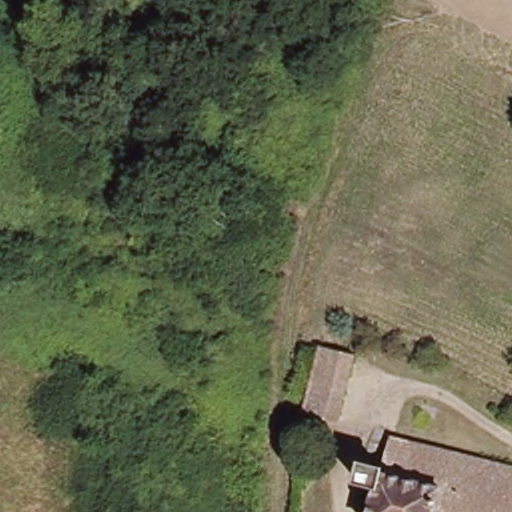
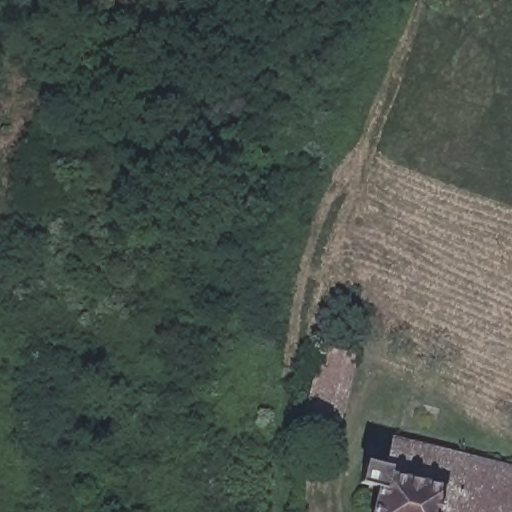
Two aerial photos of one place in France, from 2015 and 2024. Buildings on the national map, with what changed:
unchanged [(322,347),(326,348),(354,354),(344,394),(338,417),(307,410),(309,395),(312,387),(322,347)]
unchanged [(361,458),(383,462),(391,435),(512,465),(512,512),(370,512),(376,487),(355,481),(361,458)]

